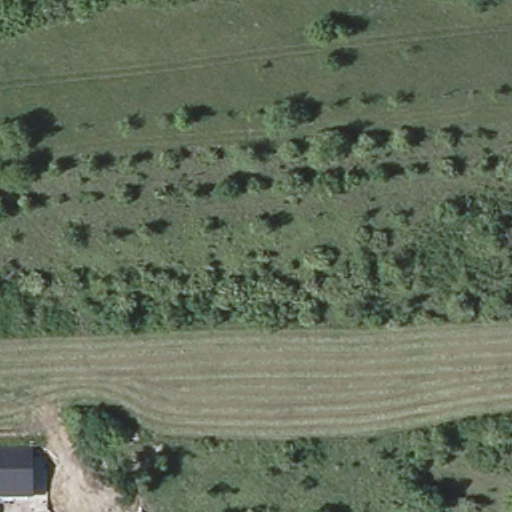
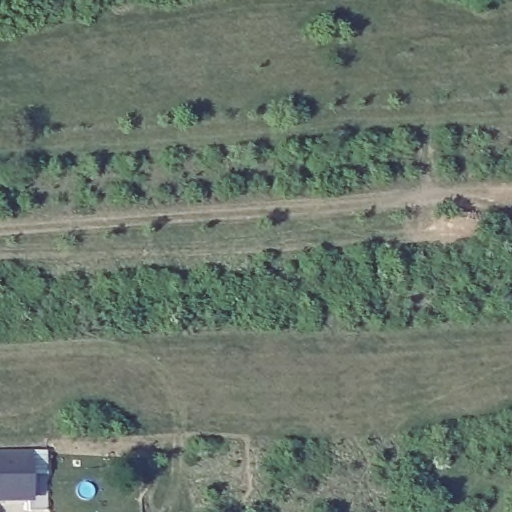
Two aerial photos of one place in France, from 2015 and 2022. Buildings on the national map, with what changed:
unchanged [(0,449),(33,449),(33,458),(45,460),(47,510),(32,511),(33,502),(0,502),(0,449)]

